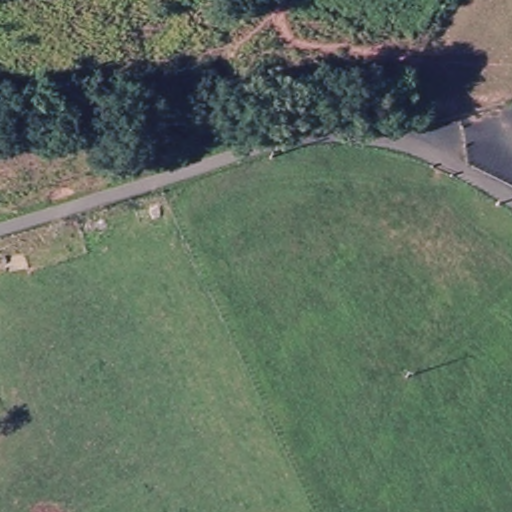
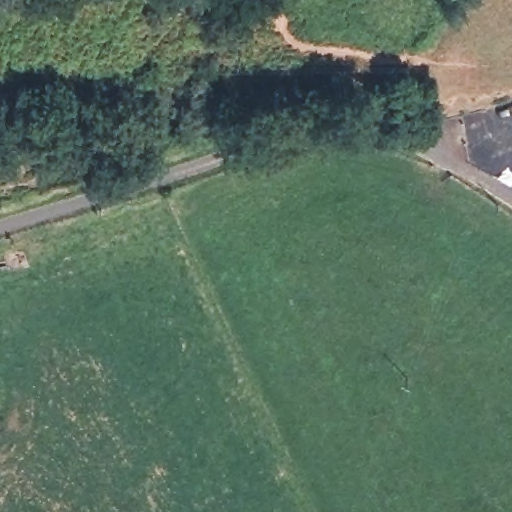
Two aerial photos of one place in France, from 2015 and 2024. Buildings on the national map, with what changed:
[]

